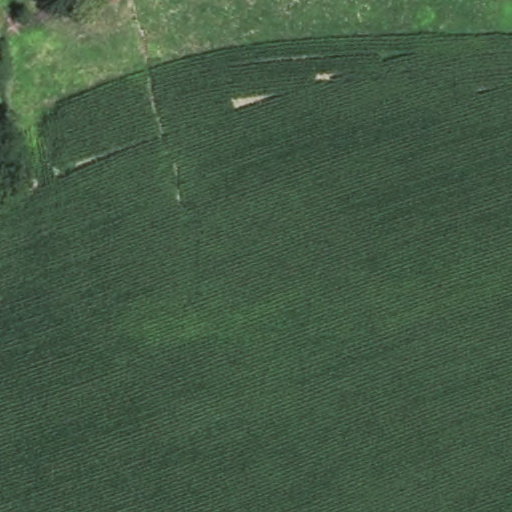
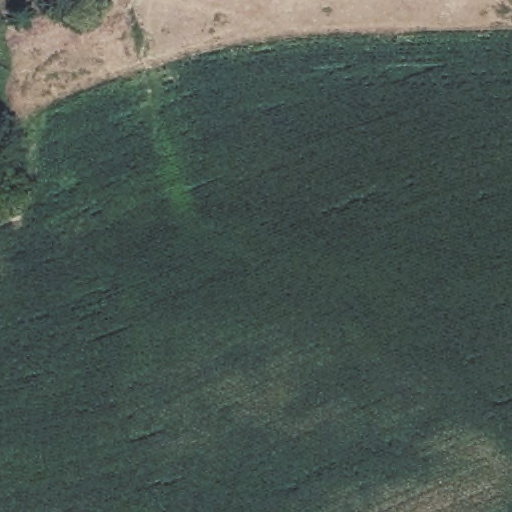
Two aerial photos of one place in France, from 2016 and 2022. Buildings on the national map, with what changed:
[]

